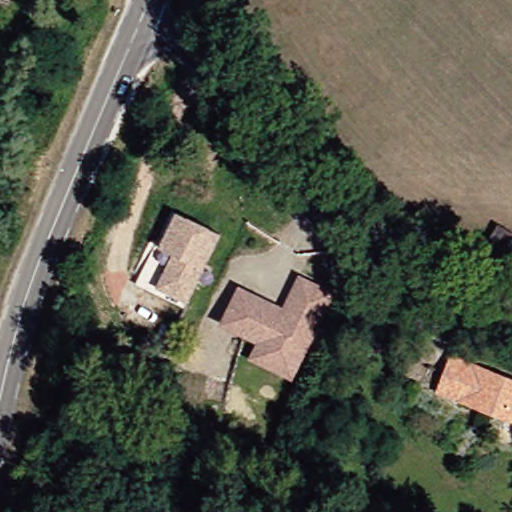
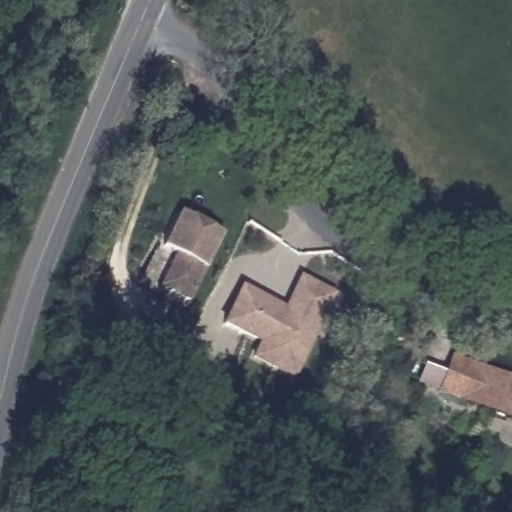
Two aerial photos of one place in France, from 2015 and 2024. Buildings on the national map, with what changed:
unchanged [(224,232),(192,302),(161,289),(177,255),(162,248),(179,212),(224,232)]
unchanged [(258,360),(265,344),(227,328),(242,292),(276,306),(288,311),(302,278),(335,292),(306,361),(298,377),(258,360)]
unchanged [(448,373),(456,356),(493,371),(512,379),(512,419),(442,390),(448,373)]

